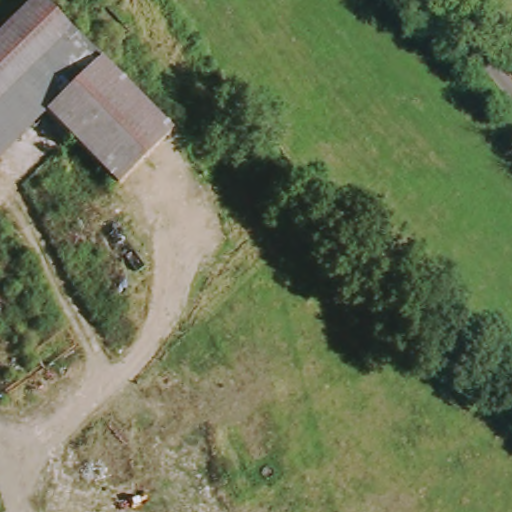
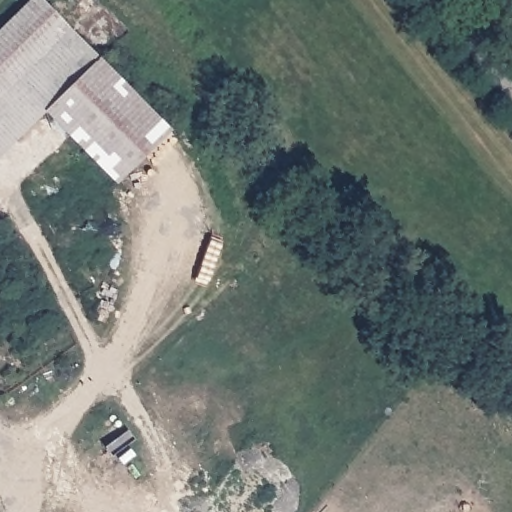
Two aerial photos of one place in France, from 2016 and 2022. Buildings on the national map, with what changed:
unchanged [(0,155),(0,26),(25,0),(37,0),(170,125),(115,179),(46,109),(0,155)]

